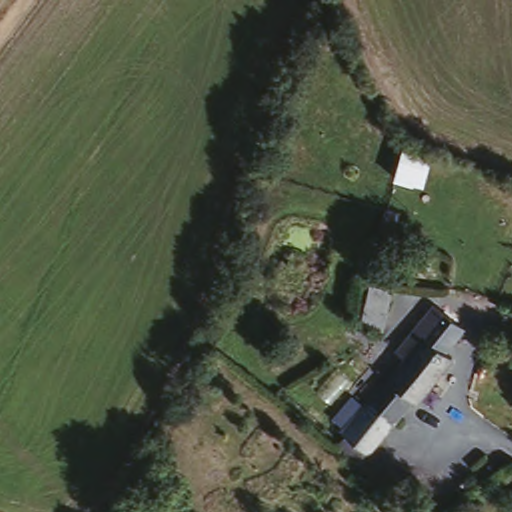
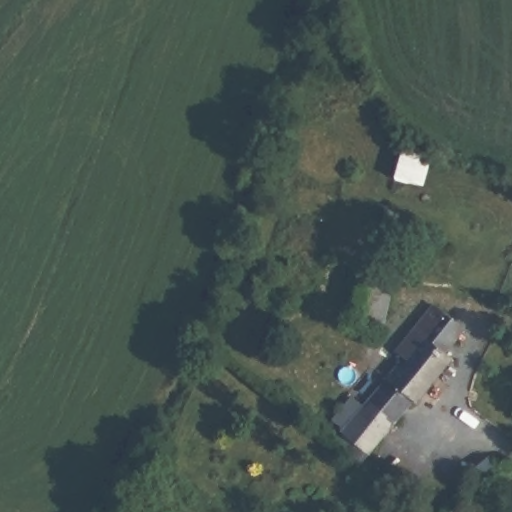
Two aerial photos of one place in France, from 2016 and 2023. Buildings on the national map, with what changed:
unchanged [(395,285),(385,330),(363,325),(374,280),(395,285)]
unchanged [(346,425),(411,351),(402,344),(441,300),(470,323),(452,347),(460,353),(423,396),(420,394),(373,449),(365,460),(342,436),(350,428),(346,425)]

